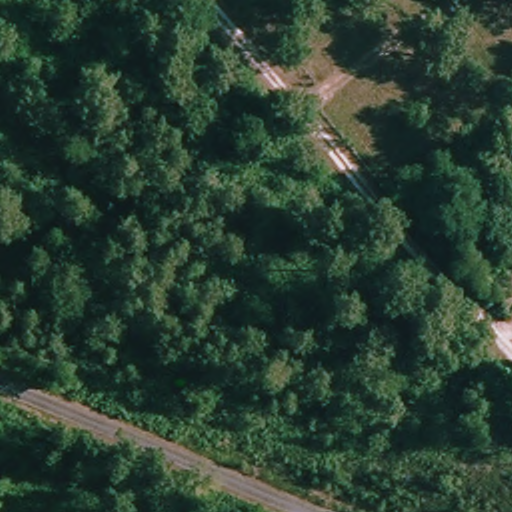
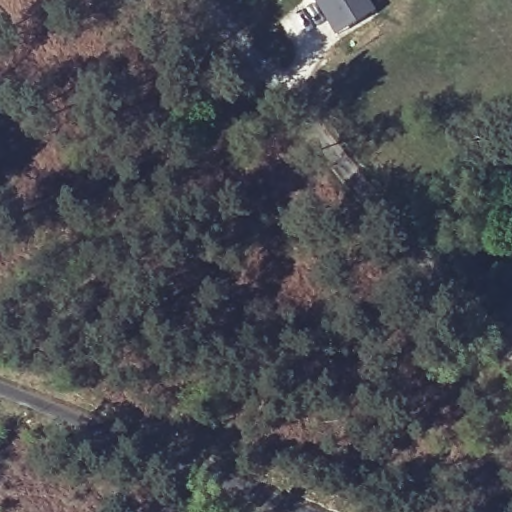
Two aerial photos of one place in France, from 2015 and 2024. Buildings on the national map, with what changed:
new [(372,12),(332,36),(311,0),(365,0),(372,12)]

